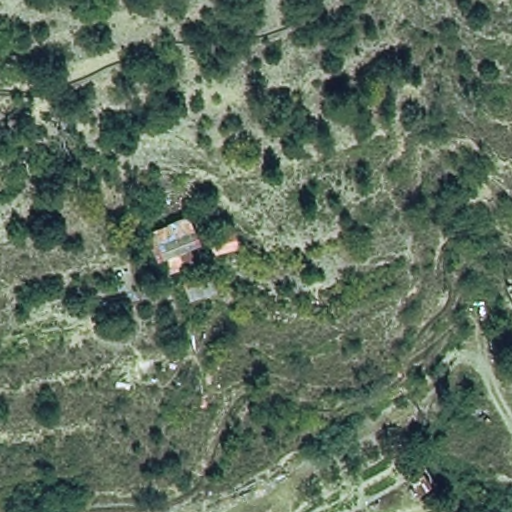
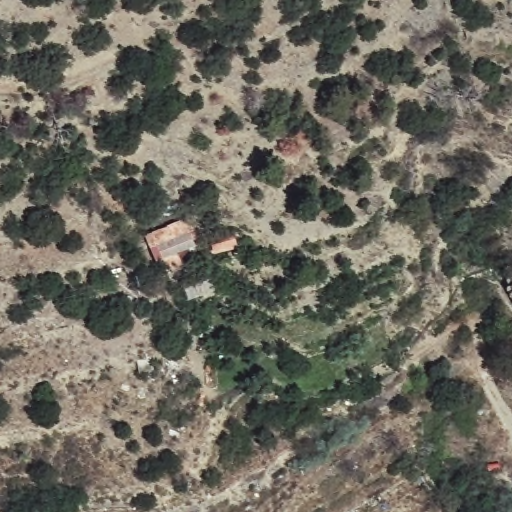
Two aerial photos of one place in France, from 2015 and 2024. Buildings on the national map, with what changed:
unchanged [(144,231),(194,216),(205,253),(160,272),(144,231)]

